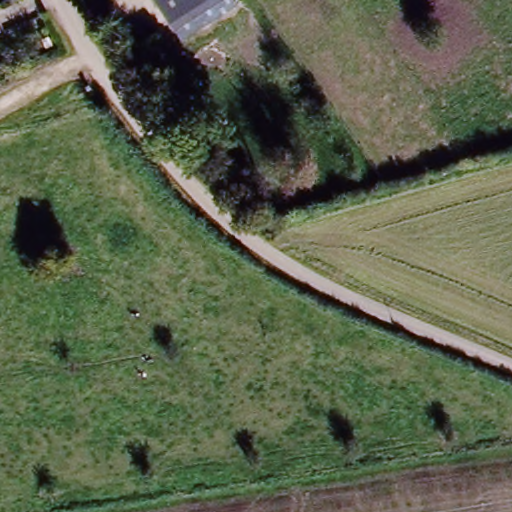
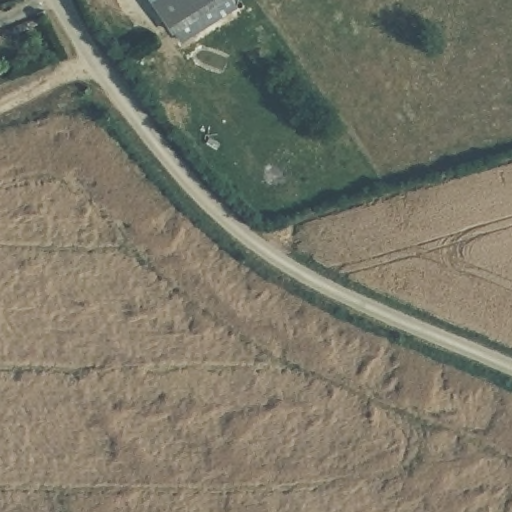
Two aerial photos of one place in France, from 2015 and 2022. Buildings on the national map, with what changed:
unchanged [(238,2),(178,42),(151,0),(236,0),(238,2)]

